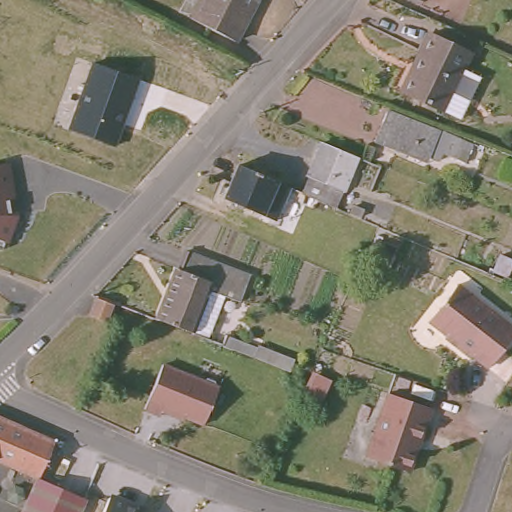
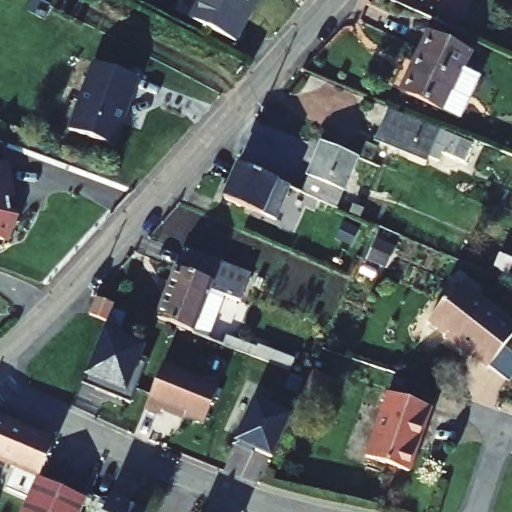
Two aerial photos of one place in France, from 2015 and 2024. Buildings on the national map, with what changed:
unchanged [(236,40),(191,16),(199,0),(256,0),(236,40)]
unchanged [(475,76),(456,119),(396,93),(424,35),(465,53),(458,69),(475,76)]
unchanged [(142,79),(117,147),(68,129),(93,62),(142,79)]
unchanged [(478,166),(442,152),(439,160),(412,150),(411,154),(376,140),(388,110),(485,148),(478,166)]
unchanged [(341,192),(307,177),(327,127),(356,139),(361,141),(341,192)]
unchanged [(11,163),(20,214),(7,244),(0,241),(0,165),(11,163)]
unchanged [(266,220),(214,198),(229,165),(280,187),(266,220)]
unchanged [(364,202),(355,198),(358,190),(368,194),(364,202)]
unchanged [(381,219),(356,208),(360,201),(384,212),(381,219)]
unchanged [(235,302),(220,296),(203,339),(188,333),(188,331),(153,318),(172,267),(174,268),(181,250),(245,274),(235,302)]
unchanged [(475,353),(473,355),(455,341),(457,337),(450,332),(449,333),(430,319),(457,283),(512,326),(512,337),(490,365),(475,353)]
unchanged [(107,321),(90,315),(96,297),(114,304),(107,321)]
new [(149,345),(126,400),(85,383),(106,332),(149,345)]
unchanged [(290,369),(254,356),(258,344),(295,357),(290,369)]
unchanged [(214,371),(222,374),(223,379),(225,380),(211,417),(186,408),(185,411),(169,405),(167,409),(151,403),(168,359),(210,374),(214,371)]
unchanged [(302,396),(310,377),(313,370),(331,377),(329,383),(320,403),(306,397),(302,396)]
unchanged [(410,471),(367,456),(389,392),(432,407),(410,471)]
unchanged [(39,477),(0,461),(0,416),(55,441),(39,477)]
unchanged [(84,499),(77,512),(22,512),(39,477),(84,499)]
unchanged [(145,512),(103,512),(110,493),(147,508),(145,512)]

